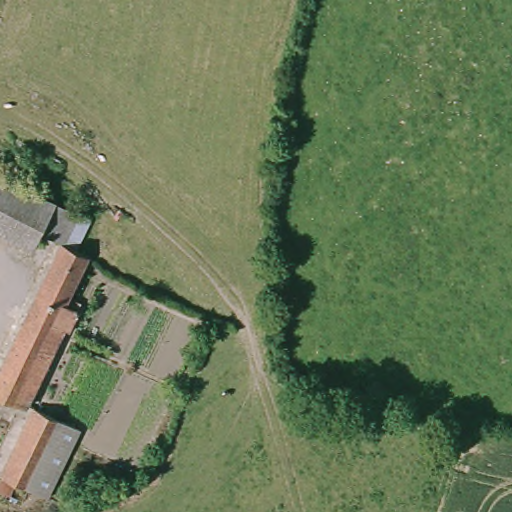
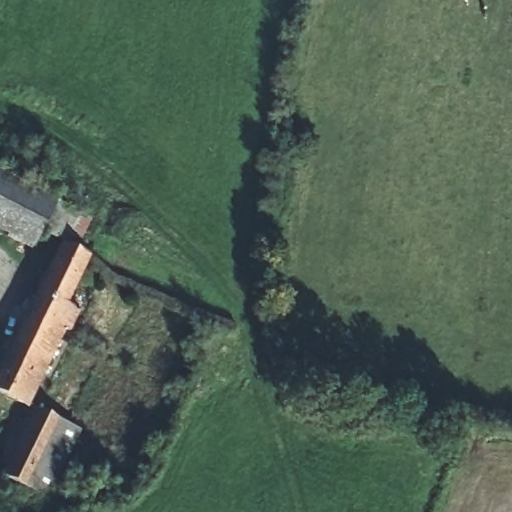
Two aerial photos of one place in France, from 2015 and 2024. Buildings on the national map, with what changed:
unchanged [(81,245),(64,237),(41,226),(31,250),(0,234),(0,172),(37,191),(54,200),(77,211),(94,220),(81,245)]
unchanged [(7,392),(0,389),(0,371),(61,244),(88,257),(71,294),(78,297),(75,303),(74,305),(82,308),(73,330),(67,328),(32,405),(7,392)]
unchanged [(41,460),(18,450),(39,409),(84,431),(64,472),(41,460)]
unchanged [(51,498),(6,475),(9,468),(18,450),(41,460),(64,472),(51,498)]

